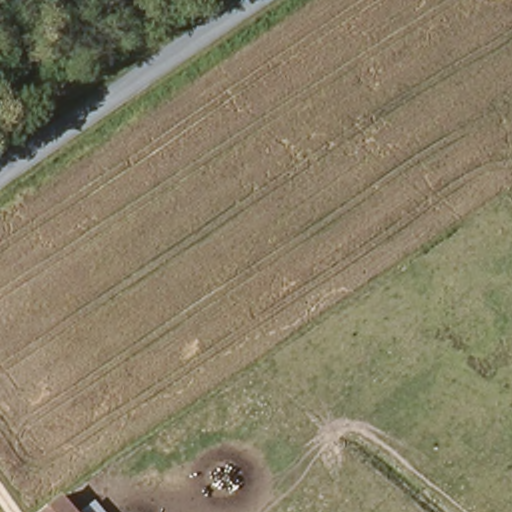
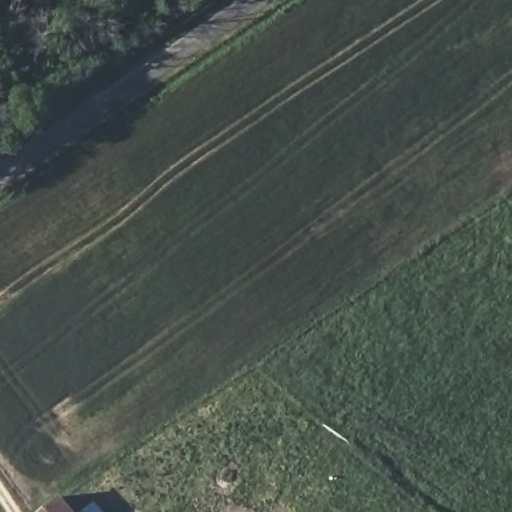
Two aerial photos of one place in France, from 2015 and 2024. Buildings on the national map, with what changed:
unchanged [(48,512),(65,498),(76,512),(48,512)]

